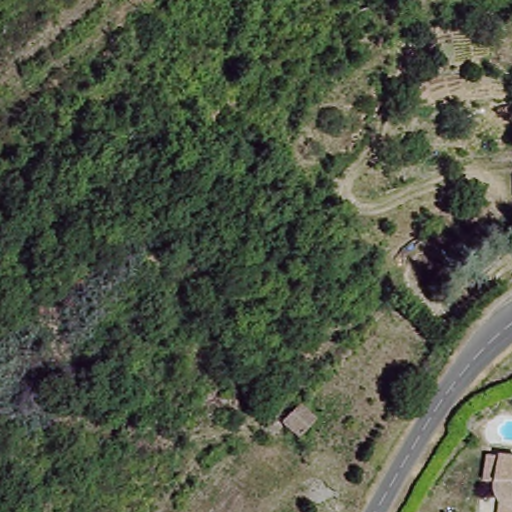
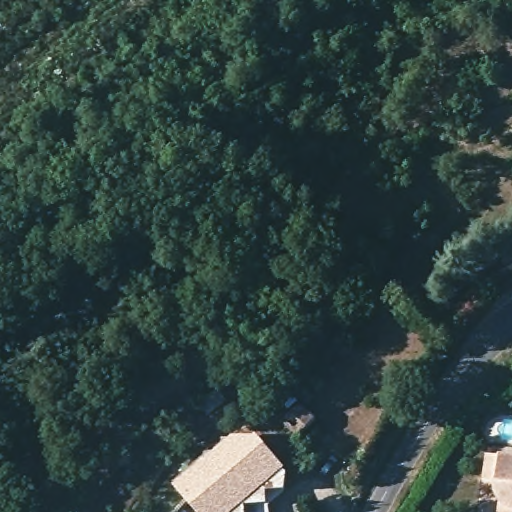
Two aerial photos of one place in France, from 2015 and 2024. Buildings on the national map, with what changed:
unchanged [(320,422),(302,441),(285,421),(302,403),(305,405),(320,422)]
new [(257,435),(286,470),(237,512),(196,512),(174,486),(231,438),(255,438),(257,435)]
unchanged [(493,490),(493,486),(483,483),(487,458),(512,461),(512,512),(496,512),(497,499),(493,490)]

